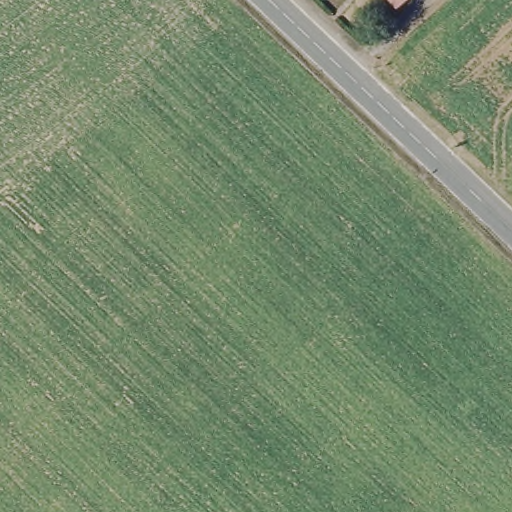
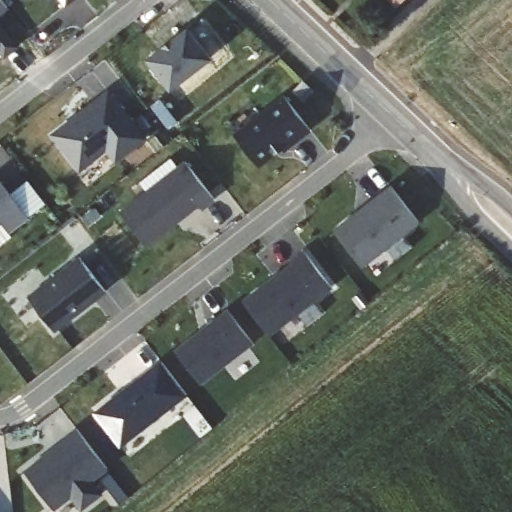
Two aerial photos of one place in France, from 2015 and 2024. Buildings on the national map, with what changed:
new [(59,0),(75,0),(65,7),(59,0)]
unchanged [(392,0),(400,0),(396,4),(392,0)]
new [(16,42),(0,55),(0,22),(16,42)]
new [(199,69),(169,88),(146,59),(187,28),(210,58),(199,69)]
new [(79,173),(49,134),(108,88),(148,139),(115,164),(105,153),(79,173)]
new [(271,152),(274,156),(259,167),(233,133),(283,94),(311,132),(286,152),(279,143),(271,152)]
new [(139,182),(171,157),(178,166),(184,161),(216,201),(203,211),(199,206),(147,247),(118,211),(146,190),(139,182)]
new [(9,234),(11,237),(0,246),(0,182),(9,194),(28,180),(48,206),(29,220),(9,234)]
new [(363,267),(334,229),(389,185),(419,223),(363,267)]
new [(243,300),(305,251),(332,287),(271,335),(243,300)]
new [(106,291),(54,331),(28,297),(80,257),(106,291)]
new [(253,343),(200,384),(174,349),(226,308),(253,343)]
new [(120,448),(93,412),(160,360),(187,396),(120,448)]
new [(75,428),(108,470),(127,497),(119,503),(100,477),(94,481),(104,492),(80,511),(70,497),(54,511),(23,470),(75,428)]

